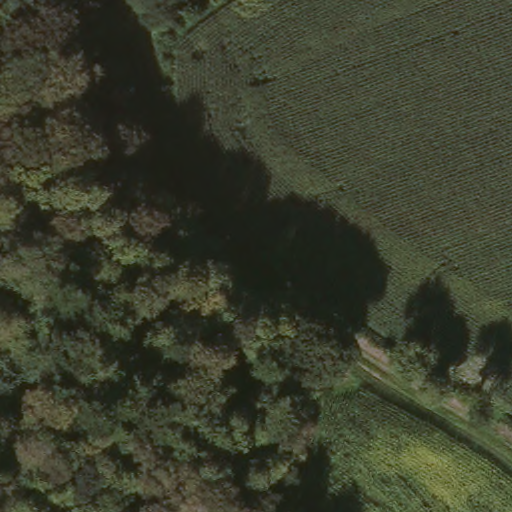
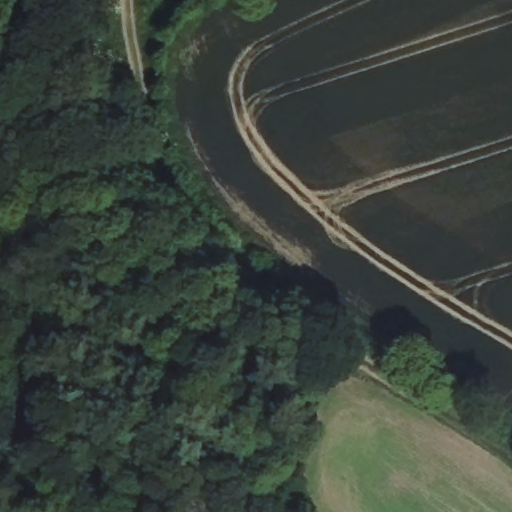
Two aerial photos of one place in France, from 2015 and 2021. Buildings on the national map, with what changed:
[]

